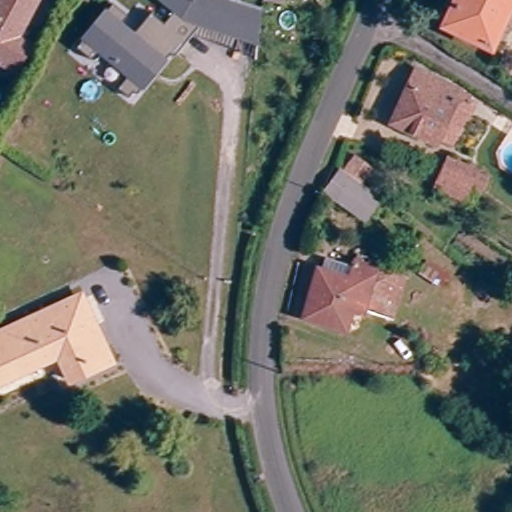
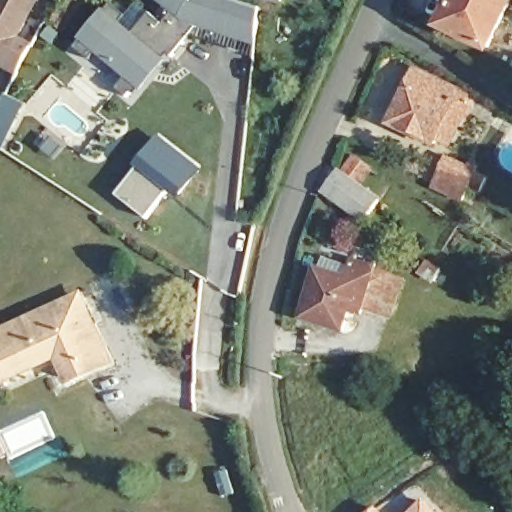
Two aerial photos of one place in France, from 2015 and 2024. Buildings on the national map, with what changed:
unchanged [(29,40),(16,66),(0,58),(0,56),(1,54),(0,54),(0,0),(29,0),(13,32),(29,40)]
unchanged [(236,0),(260,8),(257,45),(199,26),(198,29),(175,11),(173,13),(158,0),(236,0)]
unchanged [(493,50),(447,25),(460,0),(512,0),(512,14),(493,50)]
unchanged [(170,57),(156,75),(149,69),(144,76),(151,81),(137,99),(134,96),(130,102),(118,93),(129,79),(99,55),(91,65),(76,52),(111,7),(126,19),(119,29),(131,39),(149,16),(163,27),(175,11),(198,29),(185,45),(173,60),(170,57)]
unchanged [(428,144),(427,147),(386,126),(387,126),(413,75),(454,95),(451,100),(466,108),(443,152),(428,144)]
unchanged [(21,89),(0,132),(0,84),(2,80),(21,89)]
new [(158,133),(203,168),(178,198),(168,192),(135,167),(158,133)]
unchanged [(456,201),(430,188),(443,161),(469,175),(456,201)]
unchanged [(359,226),(318,202),(334,178),(343,162),(365,174),(356,193),(373,204),(359,226)]
new [(135,167),(168,192),(146,219),(115,194),(135,167)]
unchanged [(391,324),(354,307),(343,333),(301,314),(313,287),(321,268),(350,281),(358,262),(361,255),(381,264),(378,271),(408,285),(391,324)]
unchanged [(64,350),(7,392),(0,382),(0,336),(69,285),(114,345),(79,371),(64,350)]
new [(424,499),(437,512),(409,512),(424,499)]
new [(375,504),(383,512),(367,512),(375,504)]

